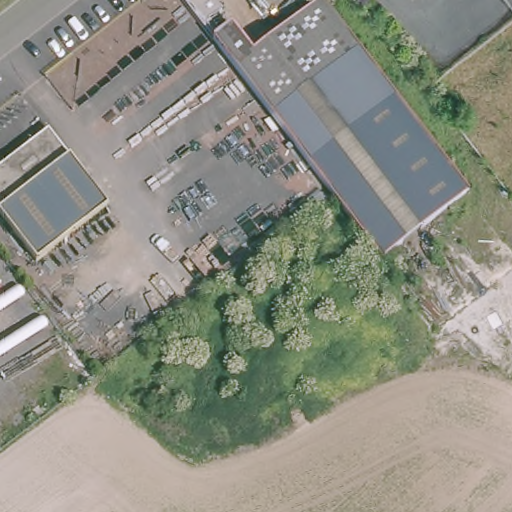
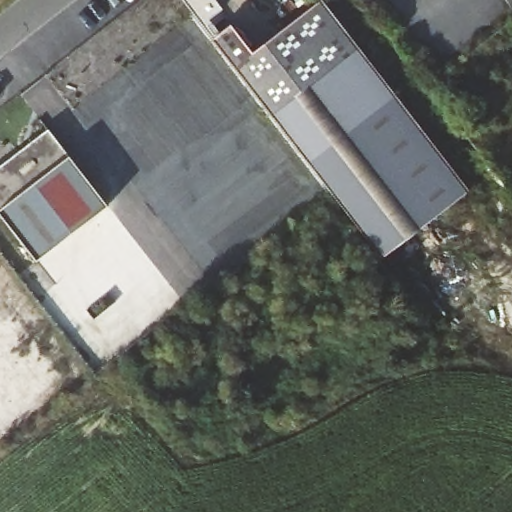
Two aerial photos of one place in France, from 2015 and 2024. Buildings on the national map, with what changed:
unchanged [(213,39),(188,6),(188,5),(184,0),(218,0),(223,7),(210,17),(221,31),(232,22),(233,24),(213,39)]
unchanged [(298,16),(320,0),(322,0),(474,195),(387,260),(289,138),(354,89),(298,16)]
unchanged [(354,89),(289,138),(213,39),(233,24),(253,50),(298,16),(354,89)]
unchanged [(103,199),(32,253),(0,211),(0,155),(43,121),(103,199)]

